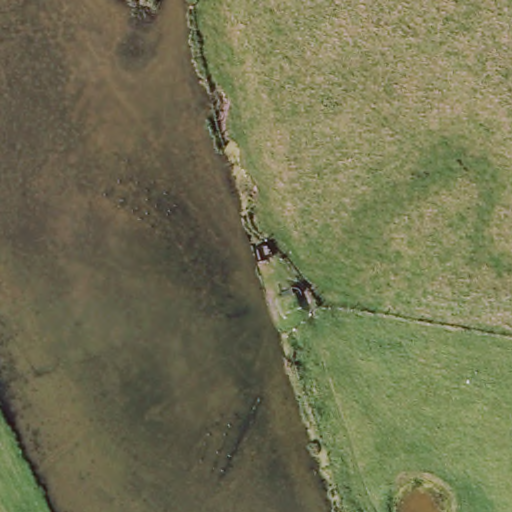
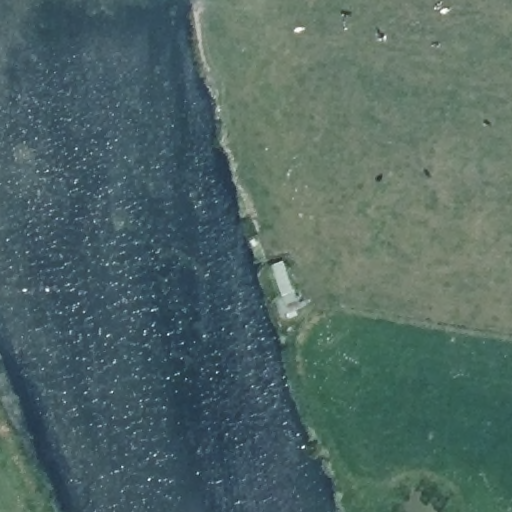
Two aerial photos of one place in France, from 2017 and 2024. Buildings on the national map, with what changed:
unchanged [(283,299),(304,294),(309,312),(287,317),(283,299)]

